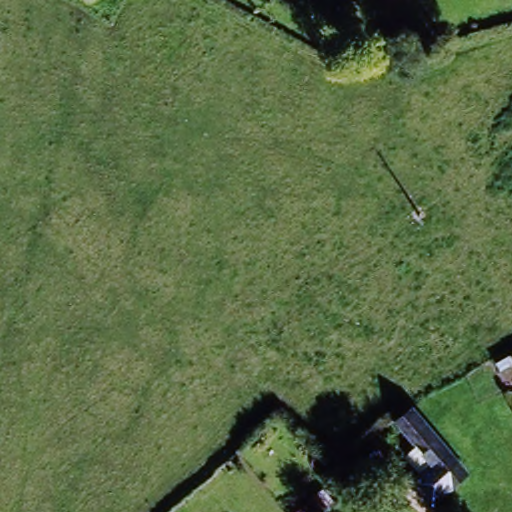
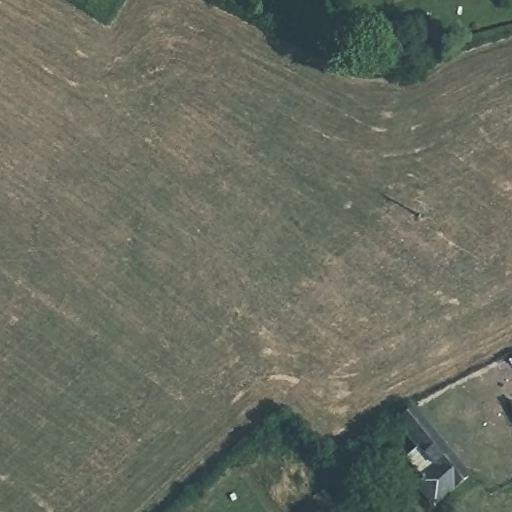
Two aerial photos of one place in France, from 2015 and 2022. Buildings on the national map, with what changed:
unchanged [(422,470),(405,452),(416,440),(407,430),(397,420),(414,406),(423,416),(430,424),(469,467),(452,482),(442,491),(437,496),(416,475),(422,470)]

